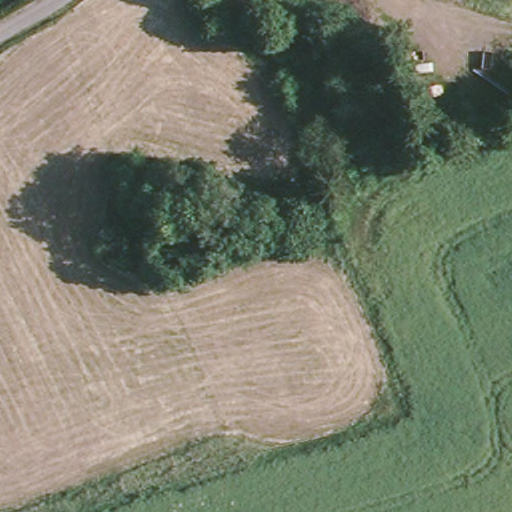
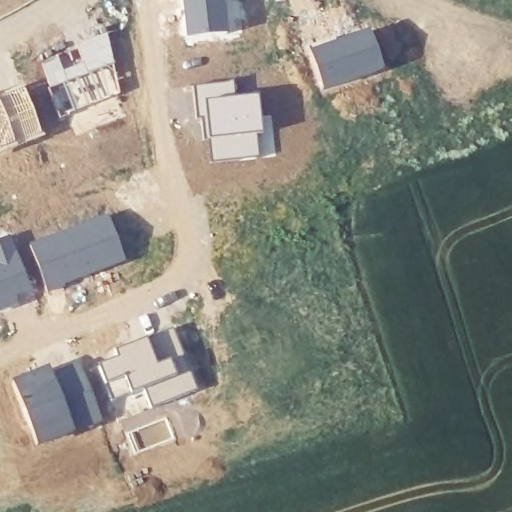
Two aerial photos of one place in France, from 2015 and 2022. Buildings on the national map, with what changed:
new [(188,35),(184,0),(226,0),(230,31),(188,35)]
unchanged [(291,25),(287,12),(305,7),(308,19),(291,25)]
new [(371,28),(386,69),(325,90),(311,48),(371,28)]
new [(57,54),(62,68),(83,61),(77,43),(107,31),(120,94),(60,115),(42,61),(57,54)]
new [(234,82),(235,95),(260,94),(264,131),(258,131),(260,156),(212,160),(212,138),(207,140),(204,117),(199,117),(196,86),(234,82)]
new [(42,134),(0,147),(0,93),(25,85),(42,134)]
new [(130,261),(48,289),(30,244),(110,212),(130,261)]
new [(0,306),(0,238),(12,232),(34,295),(0,306)]
new [(197,390),(152,406),(145,390),(115,399),(100,361),(118,355),(117,347),(175,328),(197,390)]
new [(80,359),(105,421),(40,445),(15,380),(80,359)]

